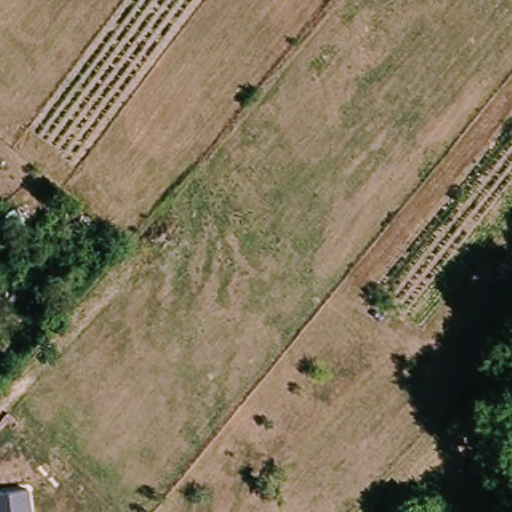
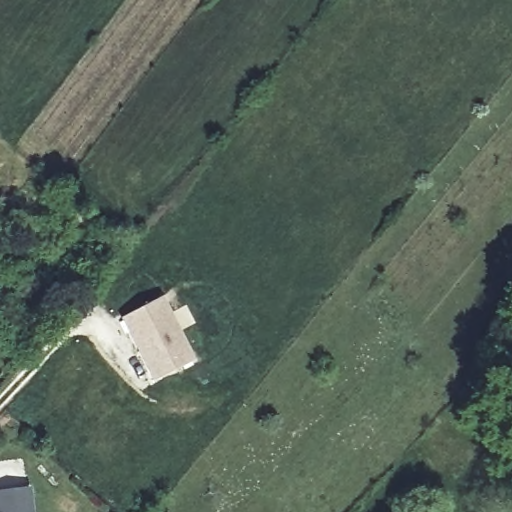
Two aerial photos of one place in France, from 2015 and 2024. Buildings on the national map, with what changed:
new [(119,319),(161,296),(193,359),(152,380),(119,319)]
unchanged [(0,512),(0,490),(28,485),(32,512),(0,512)]

